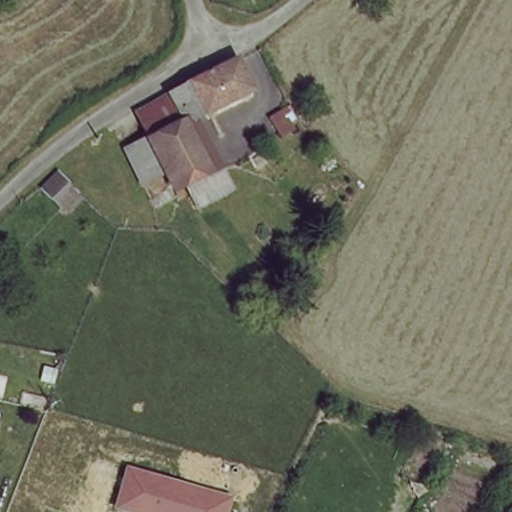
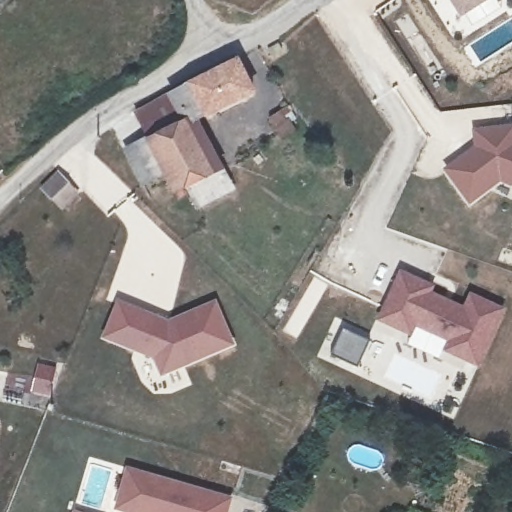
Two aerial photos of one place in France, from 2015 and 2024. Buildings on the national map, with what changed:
new [(450,0),(486,0),(460,16),(450,0)]
unchanged [(150,111),(218,69),(231,62),(252,99),(187,138),(208,175),(216,170),(231,195),(207,209),(193,184),(183,190),(175,180),(151,194),(132,165),(157,150),(138,118),(150,111)]
unchanged [(297,142),(283,123),(292,116),(306,136),(297,142)]
new [(500,180),(469,205),(444,170),(473,148),(472,130),(512,124),(512,185),(510,186),(500,180)]
new [(477,366),(442,351),(447,340),(415,325),(410,335),(377,319),(400,270),(433,285),(432,291),(464,305),(469,293),(504,309),(477,366)]
new [(116,296),(168,317),(216,296),(237,345),(160,377),(150,358),(99,337),(116,296)]
new [(37,362),(56,366),(50,397),(29,393),(37,362)]
unchanged [(113,509),(125,466),(232,498),(228,512),(123,512),(113,509)]

